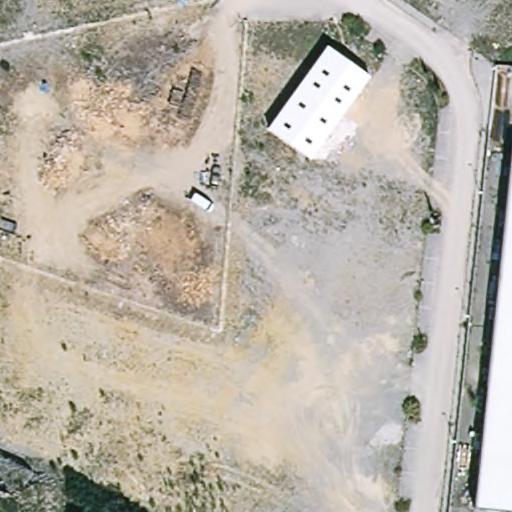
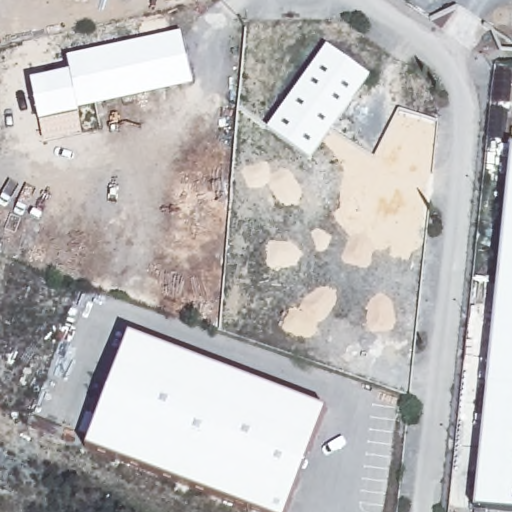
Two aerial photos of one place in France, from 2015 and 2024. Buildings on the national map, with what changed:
new [(40,123),(31,82),(70,73),(67,57),(181,32),(192,86),(40,123)]
unchanged [(312,160),(268,129),(327,46),(370,77),(312,160)]
unchanged [(512,145),(512,175),(508,175),(511,145),(512,145)]
unchanged [(508,175),(512,175),(512,512),(473,508),(508,175)]
new [(130,336),(325,410),(286,512),(257,512),(86,446),(130,336)]

